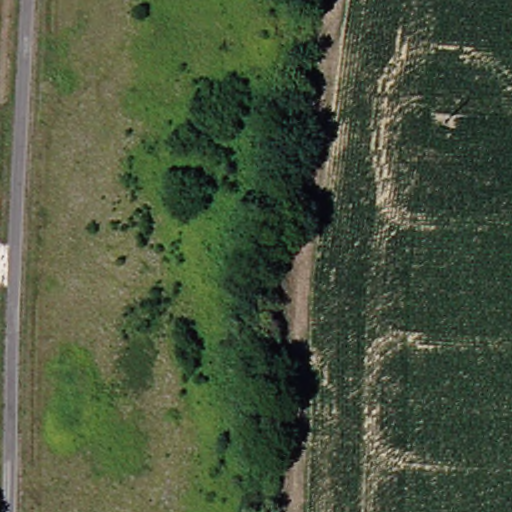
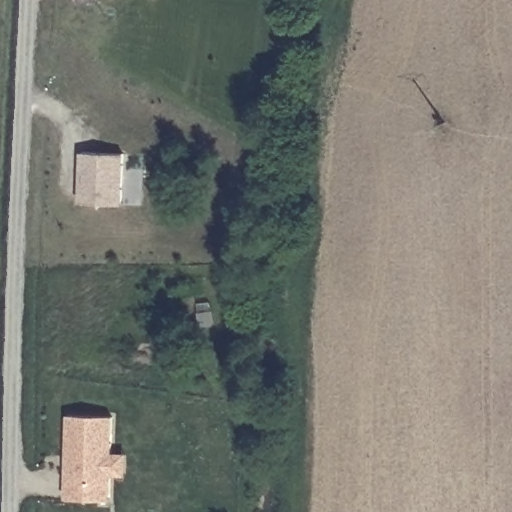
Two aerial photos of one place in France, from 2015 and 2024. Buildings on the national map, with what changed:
new [(78,156),(121,157),(121,207),(77,206),(78,156)]
new [(119,477),(107,476),(106,503),(62,501),(65,417),(109,419),(108,456),(119,457),(119,477)]

